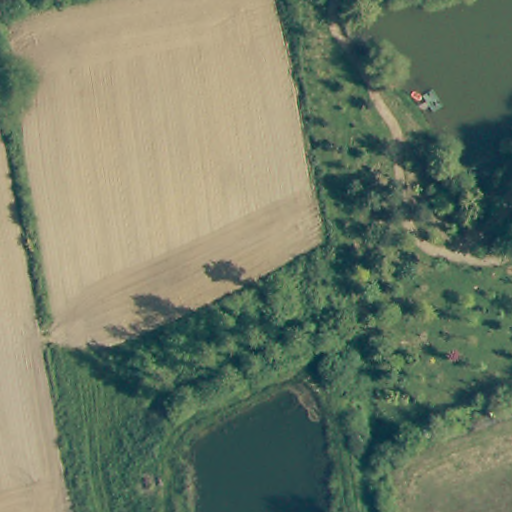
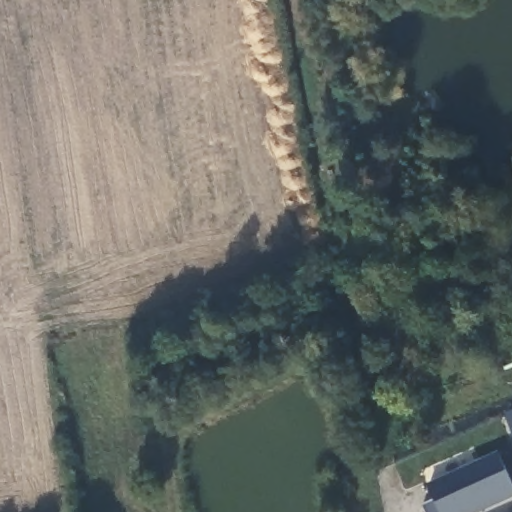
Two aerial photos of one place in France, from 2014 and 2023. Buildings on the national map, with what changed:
new [(480,512),(425,512),(422,506),(437,498),(429,484),(499,453),(512,480),(512,498),(480,512)]

